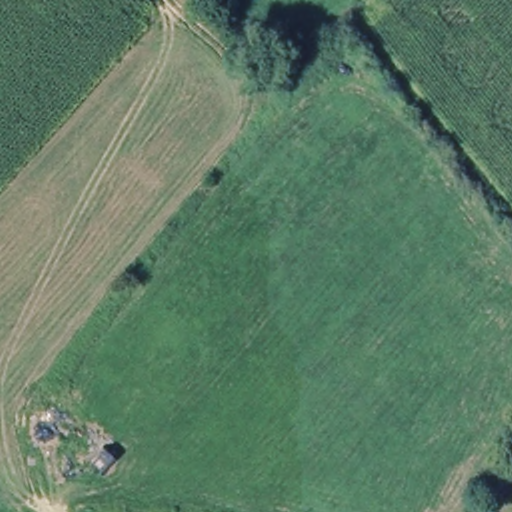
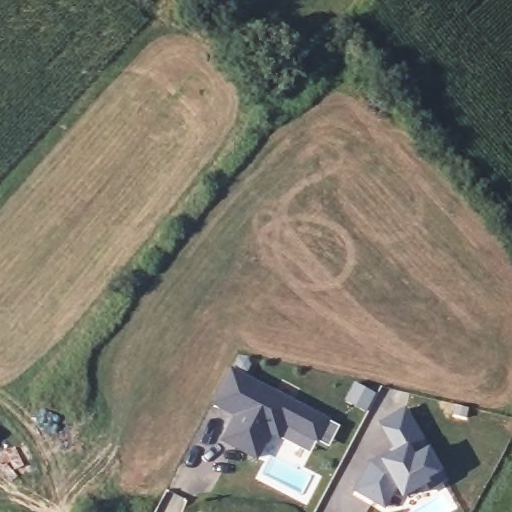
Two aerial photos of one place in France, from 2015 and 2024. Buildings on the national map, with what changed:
new [(286,423),(279,437),(270,432),(257,457),(224,439),(237,414),(229,410),(212,401),(227,374),(231,368),(256,381),(328,420),(317,440),(286,423)]
new [(429,487),(426,481),(402,496),(396,486),(393,487),(383,507),(353,492),(368,464),(375,460),(377,463),(393,452),(376,424),(399,409),(435,464),(443,478),(429,487)]

